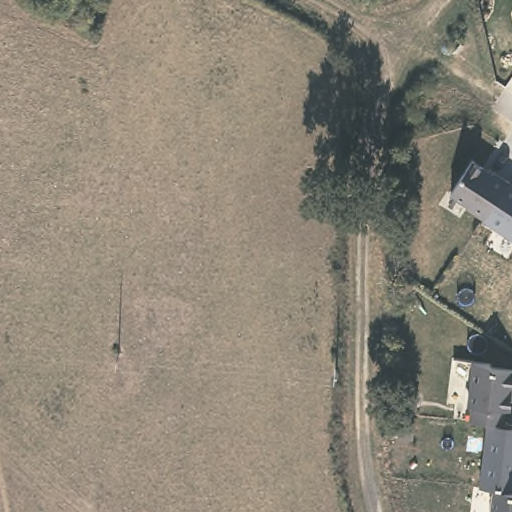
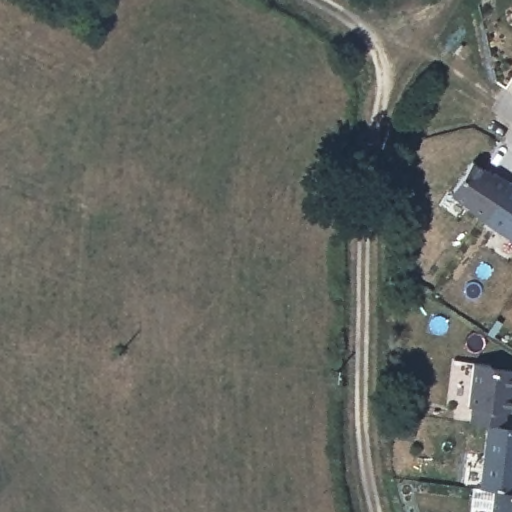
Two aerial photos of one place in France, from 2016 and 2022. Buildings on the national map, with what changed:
unchanged [(512,187),(512,241),(444,192),(468,156),(512,187)]
unchanged [(512,371),(512,400),(507,423),(512,424),(512,512),(489,512),(491,490),(479,489),(489,424),(467,421),(470,368),(512,371)]

